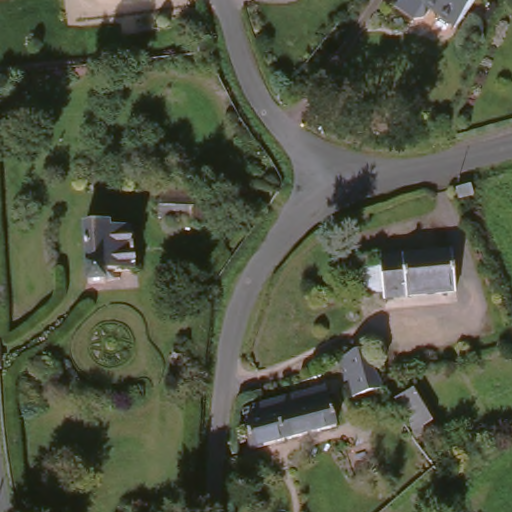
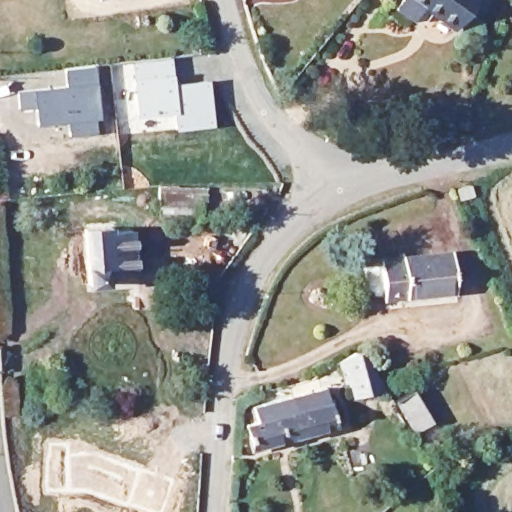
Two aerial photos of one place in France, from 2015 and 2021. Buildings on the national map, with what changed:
unchanged [(101,4),(101,0),(127,0),(101,4)]
unchanged [(451,34),(405,0),(476,0),(451,34)]
new [(173,61),(174,88),(209,85),(213,130),(176,133),(176,115),(139,119),(135,64),(173,61)]
new [(69,87),(67,69),(96,67),(101,120),(96,120),(97,134),(71,136),(69,122),(39,125),(37,107),(21,108),(19,90),(69,87)]
unchanged [(159,242),(161,222),(180,224),(181,213),(204,216),(201,247),(159,242)]
unchanged [(109,245),(129,245),(131,284),(101,285),(101,289),(82,289),(81,239),(109,238),(109,245)]
unchanged [(376,265),(448,260),(451,300),(380,305),(379,297),(363,298),(360,270),(376,268),(376,265)]
unchanged [(353,378),(348,381),(340,367),(364,355),(371,353),(375,355),(393,381),(364,398),(353,378)]
unchanged [(439,418),(422,428),(403,397),(419,387),(439,418)]
unchanged [(241,436),(254,433),(250,418),(271,412),(301,404),(323,398),(326,412),(331,410),(332,418),(329,419),(333,436),(281,450),(248,459),(241,436)]

